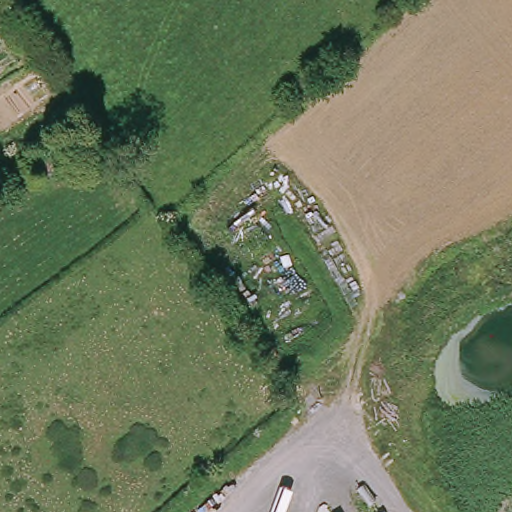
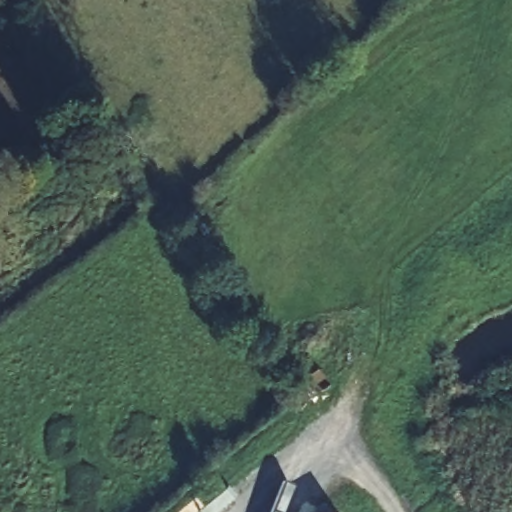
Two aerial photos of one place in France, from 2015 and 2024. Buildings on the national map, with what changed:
[]

